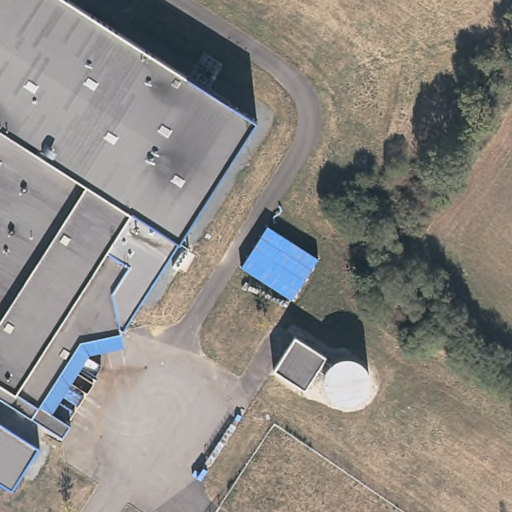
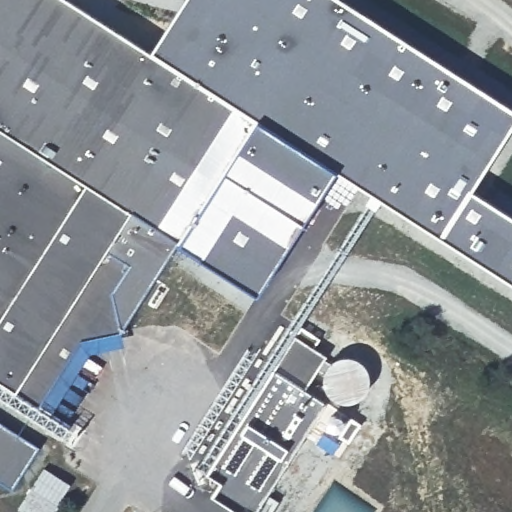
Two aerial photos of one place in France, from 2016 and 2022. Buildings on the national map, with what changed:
unchanged [(137,305),(126,271),(146,240),(123,225),(145,189),(0,96),(0,0),(70,0),(254,117),(177,239),(137,305)]
new [(472,189),(512,214),(512,283),(337,170),(258,295),(176,240),(177,239),(254,117),(151,52),(184,0),(344,0),(512,107),(512,127),(472,189)]
unchanged [(123,225),(146,240),(126,271),(137,305),(141,318),(100,333),(91,347),(80,341),(43,401),(70,419),(60,437),(0,399),(0,96),(145,189),(123,225)]
new [(211,495),(219,481),(206,473),(272,366),(279,365),(298,335),(320,350),(325,355),(305,385),(312,390),(325,401),(254,512),(238,512),(211,495)]
demolished [(320,350),(300,380),(279,365),(298,335),(320,350)]
unchanged [(331,359),(329,363),(334,366),(341,360),(353,357),(365,359),(374,366),(380,377),(380,390),(375,401),(365,408),(353,410),(340,405),(332,396),(327,385),(329,377),(323,372),(312,390),(305,385),(325,355),(331,359)]
unchanged [(0,456),(0,424),(15,433),(0,456)]

